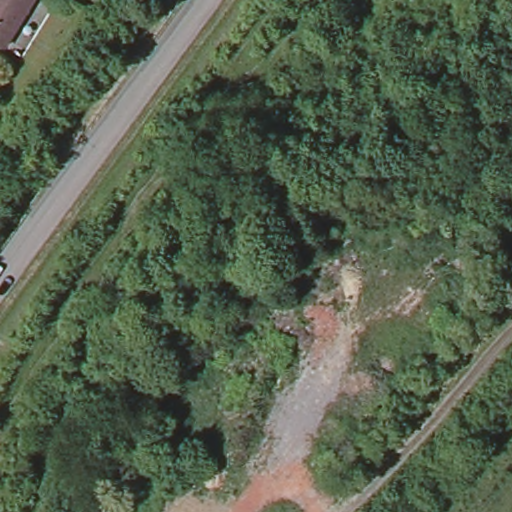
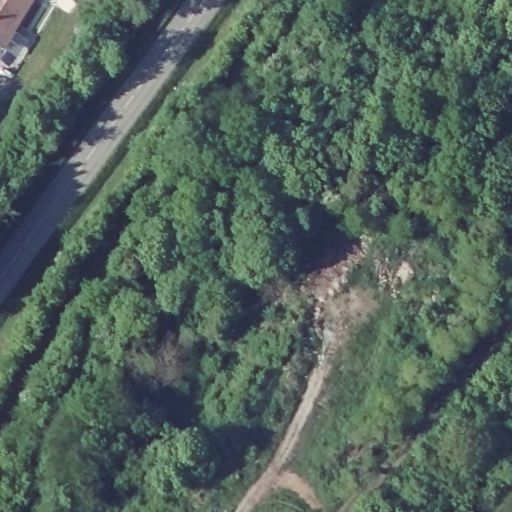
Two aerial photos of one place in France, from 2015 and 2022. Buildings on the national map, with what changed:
unchanged [(6,49),(0,45),(0,0),(36,0),(6,49)]

